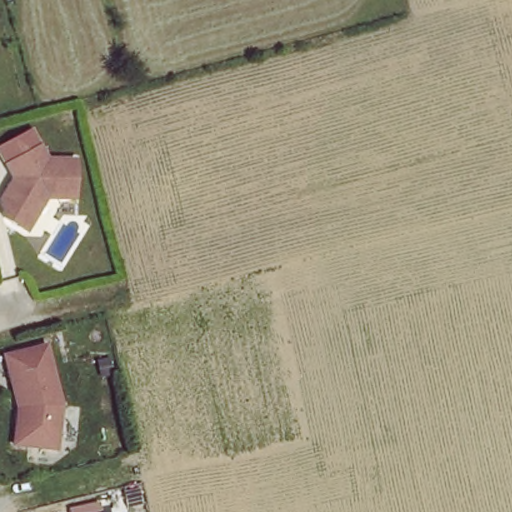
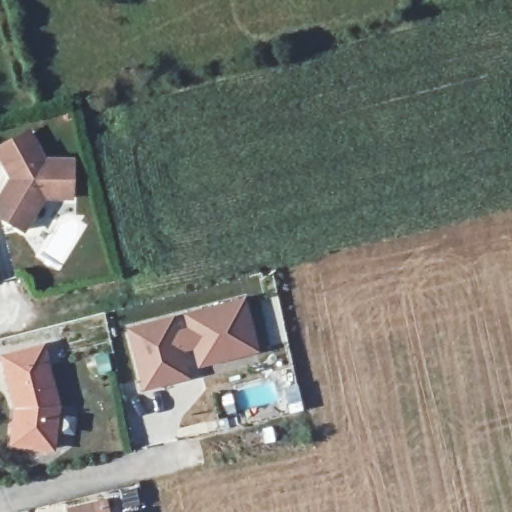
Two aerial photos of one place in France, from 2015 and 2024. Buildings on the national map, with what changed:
unchanged [(40,144),(48,157),(76,158),(75,195),(47,195),(28,228),(5,215),(2,199),(15,176),(8,163),(40,144)]
new [(157,387),(135,392),(119,334),(162,323),(166,337),(180,333),(177,319),(233,304),(243,342),(246,355),(226,360),(190,369),(185,350),(170,354),(173,363),(177,381),(157,387)]
unchanged [(45,348),(61,407),(56,451),(15,446),(17,424),(20,425),(21,414),(18,414),(19,410),(5,359),(45,348)]

